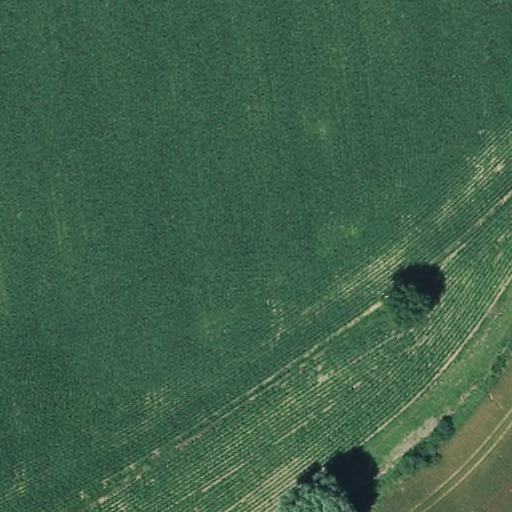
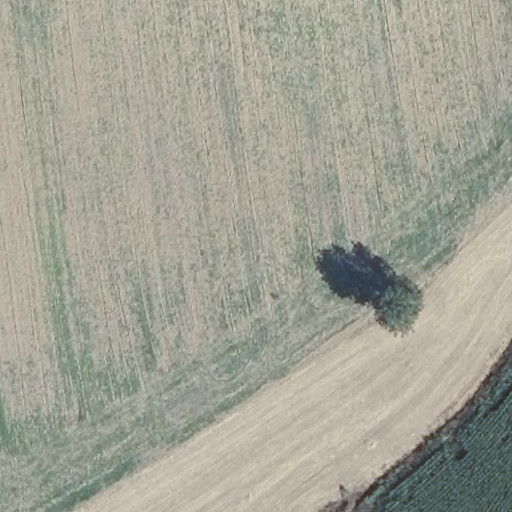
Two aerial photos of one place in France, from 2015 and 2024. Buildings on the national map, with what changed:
[]

